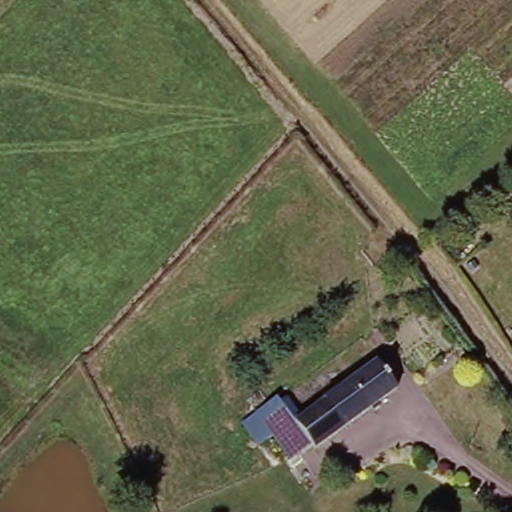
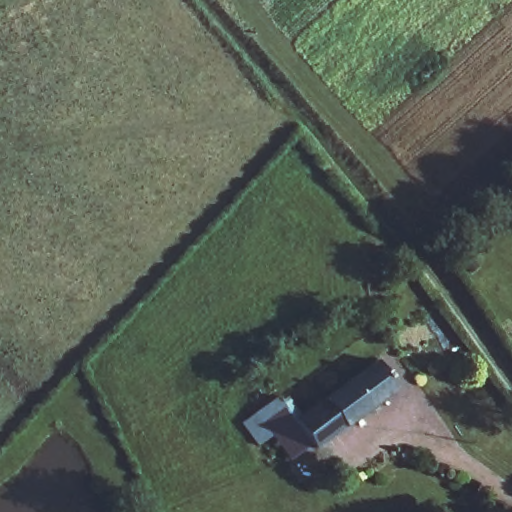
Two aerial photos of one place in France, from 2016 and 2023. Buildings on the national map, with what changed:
unchanged [(277,397),(293,421),(374,359),(394,387),(292,464),(256,413),(277,397)]

